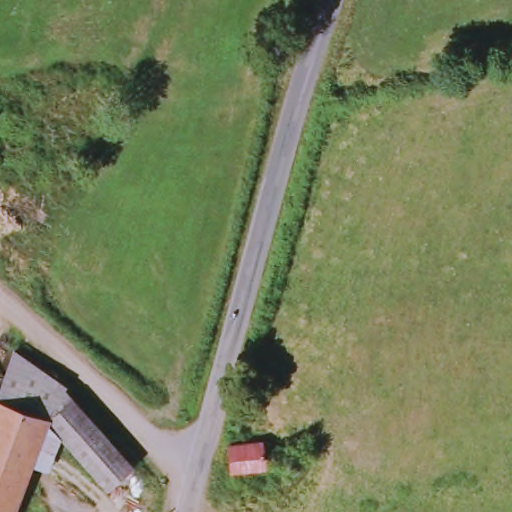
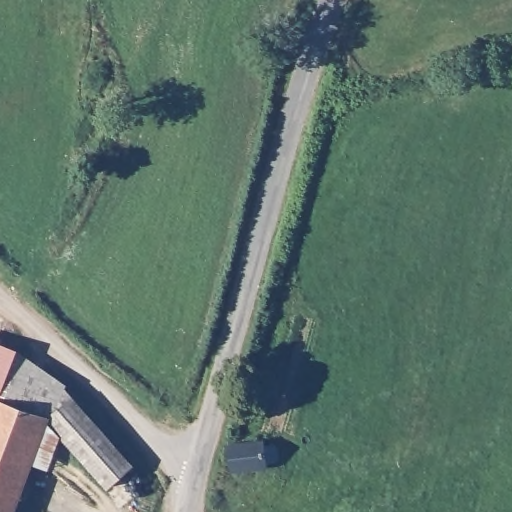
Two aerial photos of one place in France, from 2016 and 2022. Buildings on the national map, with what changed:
unchanged [(21,349),(72,385),(70,388),(53,418),(1,399),(21,349)]
unchanged [(1,399),(53,418),(70,388),(138,466),(113,488),(65,436),(60,448),(53,469),(37,462),(18,512),(0,512),(0,401),(1,399)]
unchanged [(1,399),(0,401),(0,398),(1,399)]
unchanged [(227,472),(224,446),(258,441),(261,468),(227,472)]

